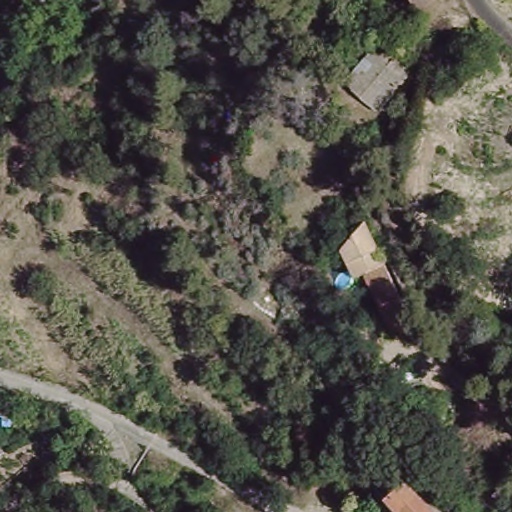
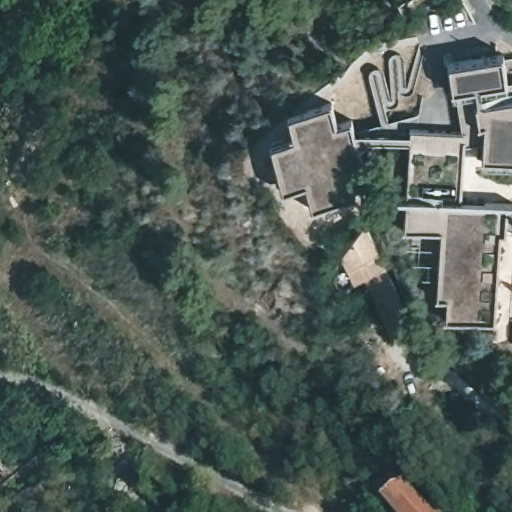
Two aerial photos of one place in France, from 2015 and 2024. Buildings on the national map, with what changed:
new [(408,0),(423,0),(414,7),(408,0)]
demolished [(414,0),(436,0),(423,11),(414,0)]
demolished [(381,55),(387,49),(412,72),(380,109),(348,81),(375,50),(381,55)]
new [(512,80),(512,162),(482,160),(483,141),(484,125),(480,126),(475,90),(457,92),(451,94),(447,64),(503,55),(507,81),(512,80)]
new [(406,196),(411,126),(462,131),(457,92),(475,90),(480,126),(484,125),(483,141),(465,145),(462,200),(502,202),(495,321),(447,317),(448,295),(438,295),(442,230),(405,227),(406,196)]
new [(331,102),(337,125),(351,121),(362,167),(349,171),(355,195),(313,206),(306,182),(282,189),(270,141),(295,135),(289,112),(331,102)]
unchanged [(366,270),(355,275),(340,243),(365,219),(365,220),(388,270),(413,320),(394,329),(366,270)]
unchanged [(387,497),(376,486),(393,470),(404,482),(406,480),(436,512),(399,512),(386,498),(387,497)]

